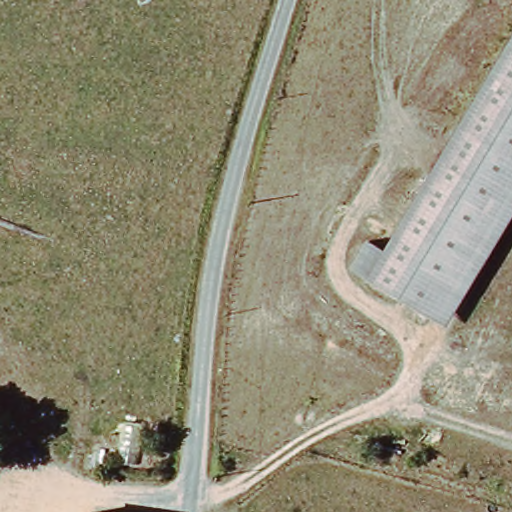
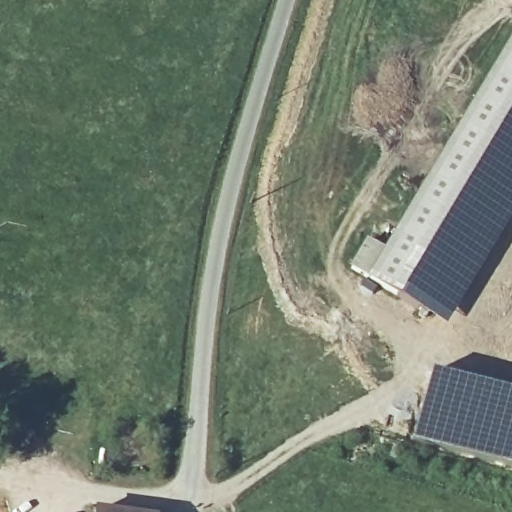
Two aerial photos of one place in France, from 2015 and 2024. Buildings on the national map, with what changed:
unchanged [(350,266),(367,237),(386,250),(512,39),(512,216),(446,326),(350,266)]
new [(512,393),(512,467),(410,441),(430,371),(512,393)]

